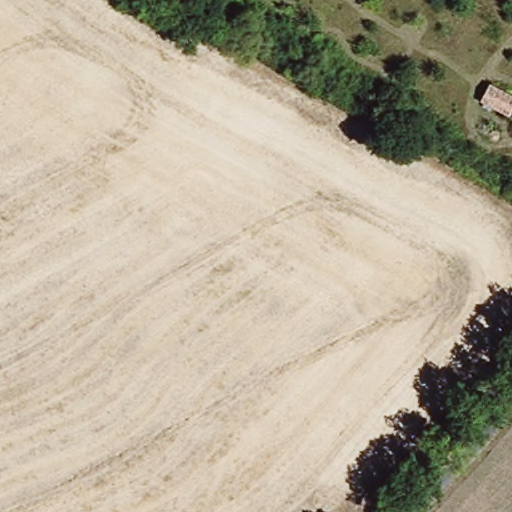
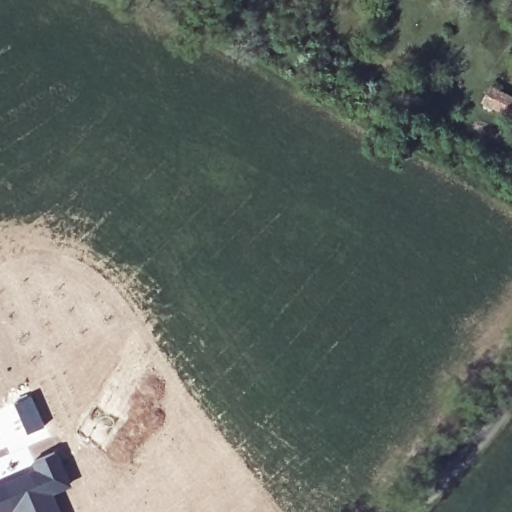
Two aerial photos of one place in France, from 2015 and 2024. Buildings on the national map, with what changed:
unchanged [(502,91),(512,96),(512,111),(496,104),(502,91)]
new [(30,393),(43,425),(26,432),(13,401),(30,393)]
new [(55,448),(71,485),(53,493),(61,512),(0,512),(0,479),(23,467),(55,448)]

